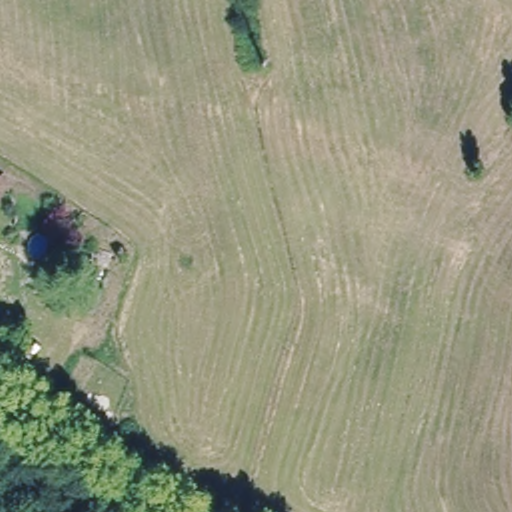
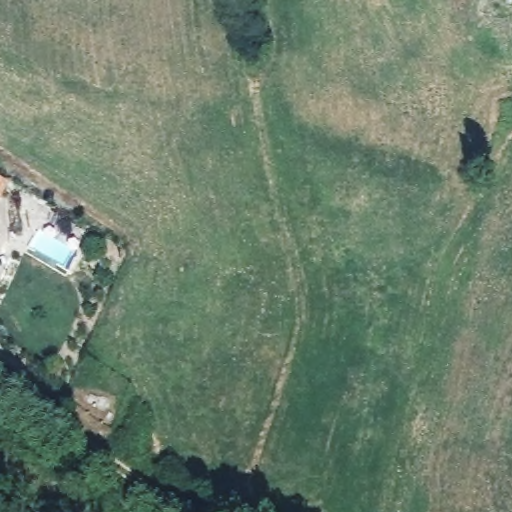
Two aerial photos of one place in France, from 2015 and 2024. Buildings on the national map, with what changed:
unchanged [(4,178),(0,187),(0,176),(4,178)]

